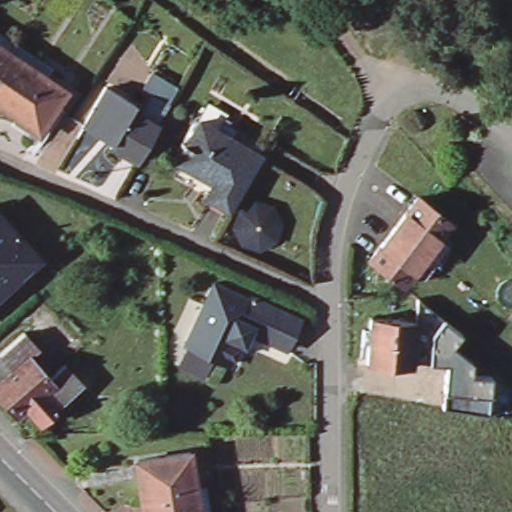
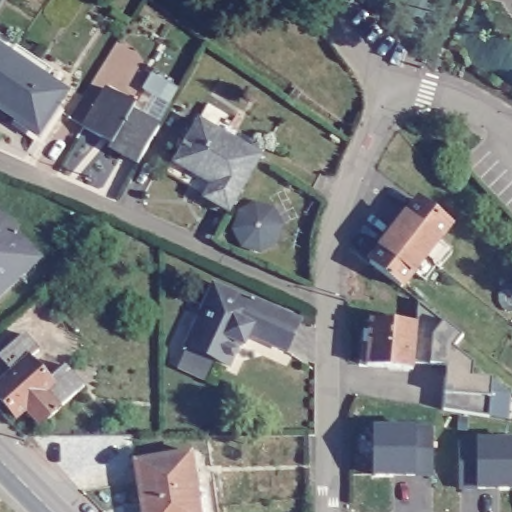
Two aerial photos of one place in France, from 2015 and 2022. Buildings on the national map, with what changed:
unchanged [(10,55),(0,69),(0,48),(10,55)]
unchanged [(67,92),(39,133),(0,107),(0,69),(10,55),(67,92)]
unchanged [(168,105),(143,92),(152,75),(177,89),(168,105)]
unchanged [(110,147),(113,141),(103,136),(102,139),(84,130),(105,91),(134,106),(131,112),(157,126),(160,127),(140,162),(137,161),(110,147)]
unchanged [(182,148),(198,120),(259,156),(227,210),(204,196),(212,184),(178,164),(186,151),(182,148)]
unchanged [(420,280),(410,272),(397,288),(365,263),(413,201),(446,226),(433,242),(444,250),(420,280)]
unchanged [(275,207),(285,225),(280,243),(262,254),(242,247),(232,229),(238,212),(257,202),(275,207)]
unchanged [(42,259),(0,297),(0,213),(42,259)]
unchanged [(245,301),(233,327),(243,332),(237,345),(233,343),(223,363),(181,343),(208,284),(245,301)]
unchanged [(247,298),(293,320),(280,349),(243,332),(233,327),(245,301),(247,298)]
unchanged [(410,322),(407,368),(362,365),(364,320),(410,322)]
unchanged [(412,322),(423,323),(422,342),(432,342),(432,331),(452,332),(452,336),(461,336),(459,371),(407,368),(410,322),(412,322)]
unchanged [(29,330),(43,345),(35,353),(33,351),(0,380),(0,355),(29,330)]
unchanged [(35,353),(55,374),(58,379),(30,403),(20,412),(0,390),(0,380),(33,351),(35,353)]
unchanged [(55,374),(69,362),(87,382),(45,419),(30,403),(58,379),(55,374)]
new [(433,424),(432,473),(376,474),(375,422),(433,424)]
new [(512,487),(461,488),(460,434),(512,435),(512,487)]
unchanged [(197,512),(142,512),(133,462),(187,452),(197,512)]

